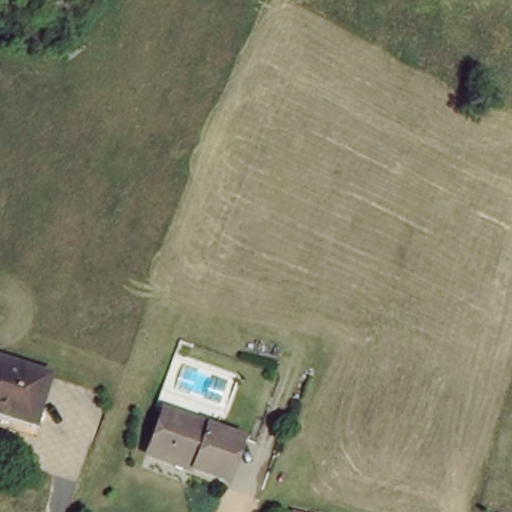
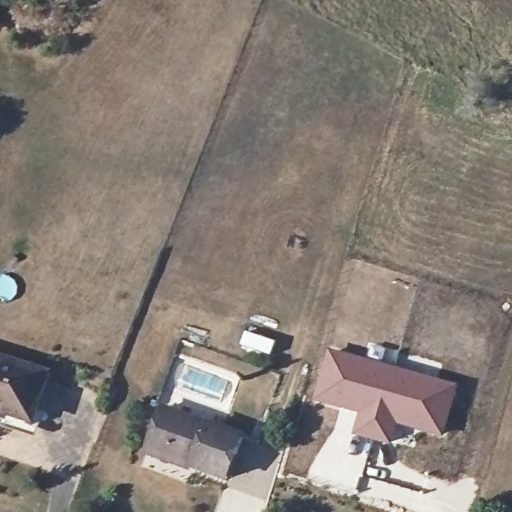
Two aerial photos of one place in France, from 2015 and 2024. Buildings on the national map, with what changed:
new [(442,433),(396,422),(390,443),(358,434),(363,413),(319,398),(331,353),(455,388),(442,433)]
unchanged [(48,430),(4,416),(2,425),(0,424),(0,355),(64,375),(48,430)]
unchanged [(191,469),(192,463),(148,447),(163,406),(241,434),(226,482),(191,469)]

